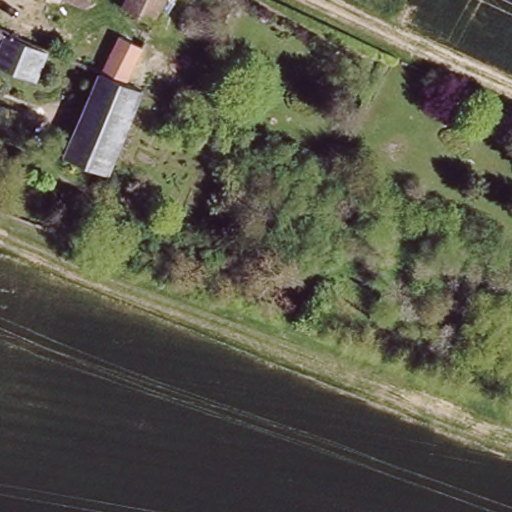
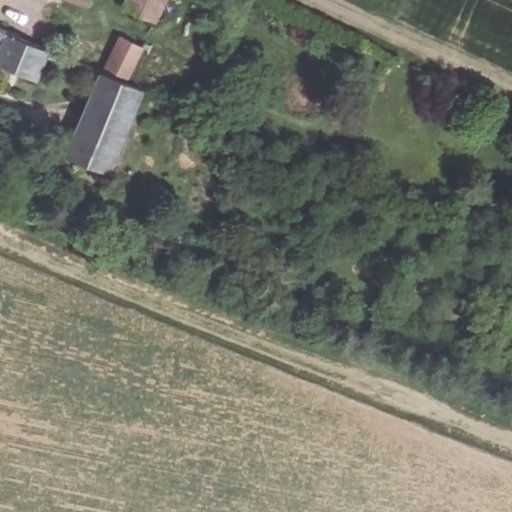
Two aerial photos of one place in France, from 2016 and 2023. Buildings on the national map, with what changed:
unchanged [(82,6),(67,0),(85,0),(82,6)]
unchanged [(149,28),(129,19),(137,0),(161,0),(149,28)]
unchanged [(45,52),(31,83),(0,70),(0,33),(45,52)]
unchanged [(109,38),(152,57),(124,135),(80,115),(109,38)]
unchanged [(124,135),(108,174),(100,170),(105,160),(67,144),(80,115),(124,135)]

